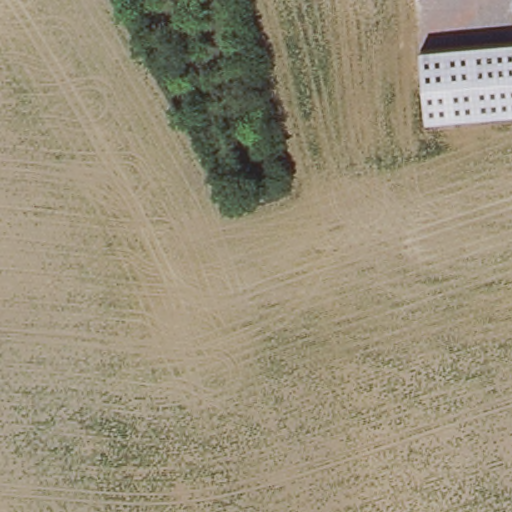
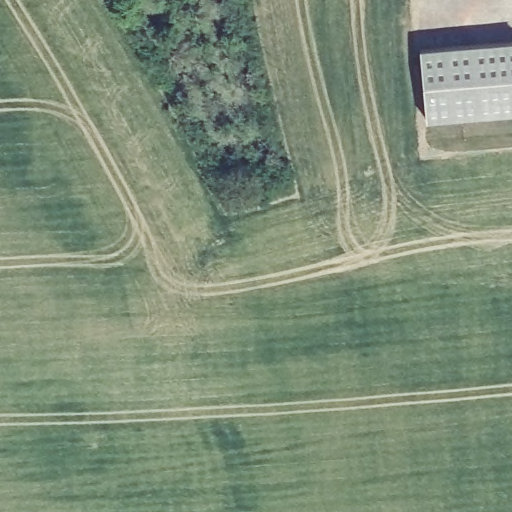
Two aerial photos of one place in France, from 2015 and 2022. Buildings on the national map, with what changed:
unchanged [(426,122),(420,51),(512,42),(512,115),(426,122)]

